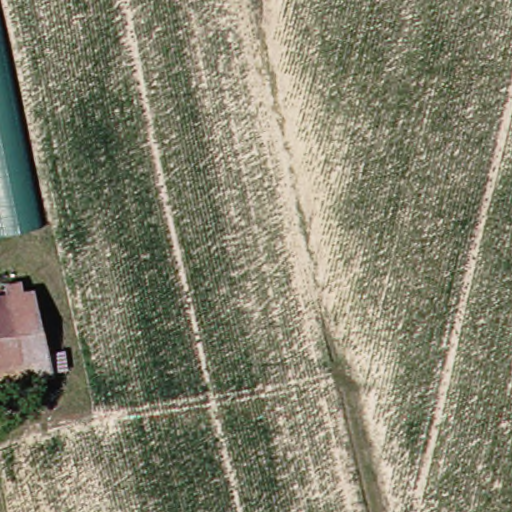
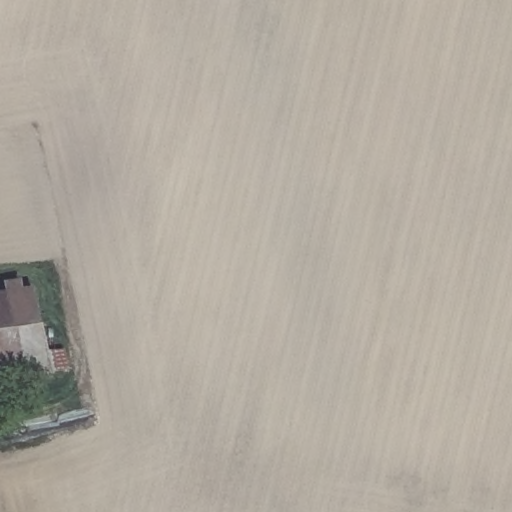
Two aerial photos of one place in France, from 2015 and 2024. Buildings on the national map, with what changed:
demolished [(0,236),(0,15),(45,227),(0,236)]
unchanged [(11,293),(10,282),(26,281),(29,292),(42,291),(54,367),(29,372),(0,376),(0,295),(11,293)]

